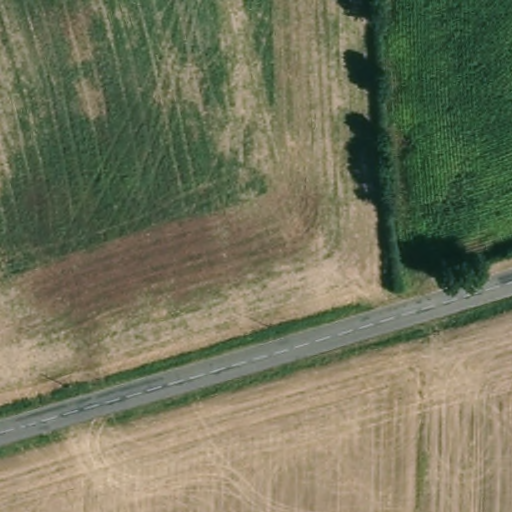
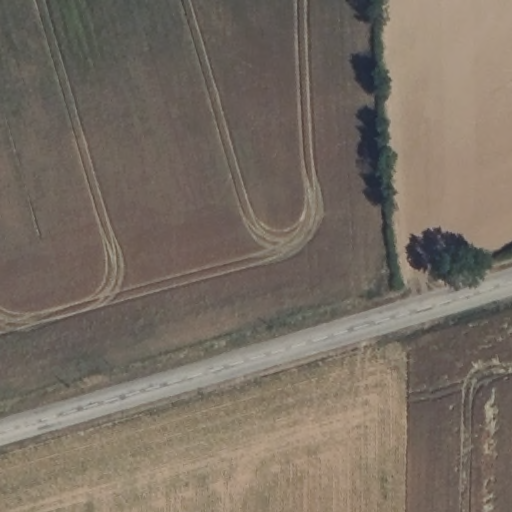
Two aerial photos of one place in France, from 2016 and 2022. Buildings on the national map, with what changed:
[]

